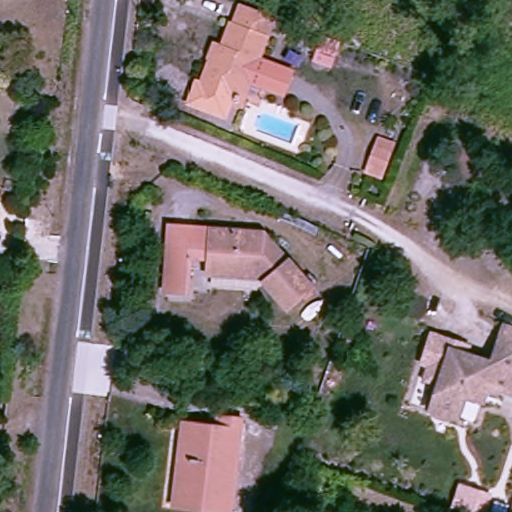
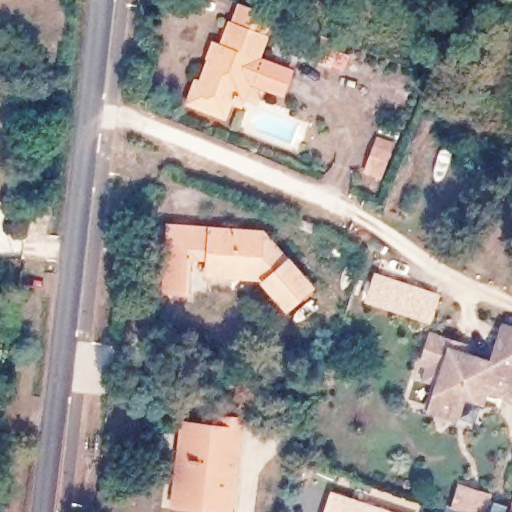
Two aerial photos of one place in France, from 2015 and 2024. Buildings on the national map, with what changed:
unchanged [(278,99),(245,87),(237,106),(196,90),(206,63),(212,65),(225,30),(228,31),(236,10),(269,22),(253,65),(286,77),(278,99)]
new [(381,135),(385,126),(399,132),(395,141),(388,160),(384,169),(370,163),(374,154),(381,135)]
unchanged [(292,304),(265,273),(213,269),(215,250),(204,249),(204,253),(192,252),(190,288),(170,287),(174,224),(268,229),(315,283),(292,304)]
new [(441,292),(432,321),(366,299),(375,271),(441,292)]
unchanged [(477,391),(472,406),(454,400),(446,423),(421,415),(429,393),(411,387),(416,370),(412,368),(421,341),(450,350),(447,358),(482,370),(490,348),(496,329),(512,335),(512,403),(477,391)]
unchanged [(214,440),(215,430),(235,432),(226,512),(201,512),(201,509),(171,506),(179,436),(214,440)]
unchanged [(485,495),(479,512),(461,512),(452,509),(460,486),(485,495)]
new [(398,512),(323,512),(330,490),(398,512)]

